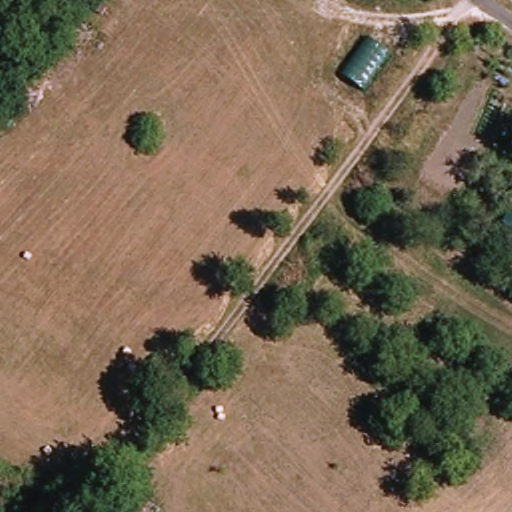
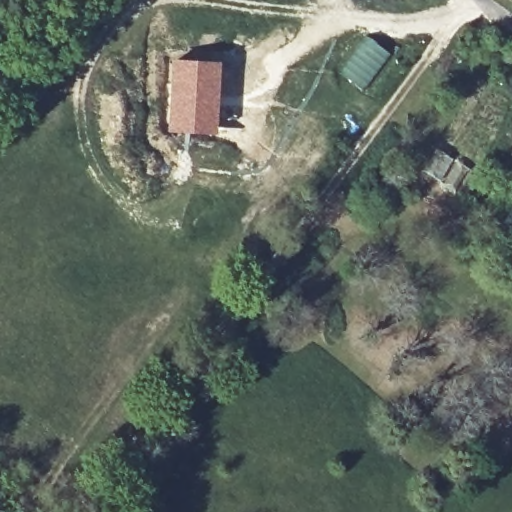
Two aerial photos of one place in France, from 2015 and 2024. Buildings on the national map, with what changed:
unchanged [(506,0),(512,0),(512,8),(505,3),(506,0)]
new [(176,124),(180,60),(217,61),(212,125),(176,124)]

